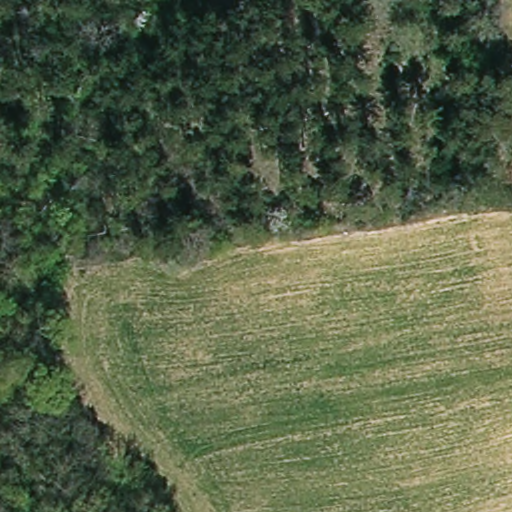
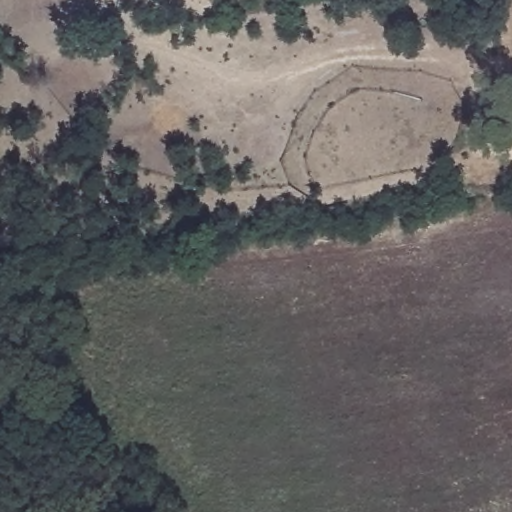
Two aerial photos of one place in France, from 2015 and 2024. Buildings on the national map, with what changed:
[]

